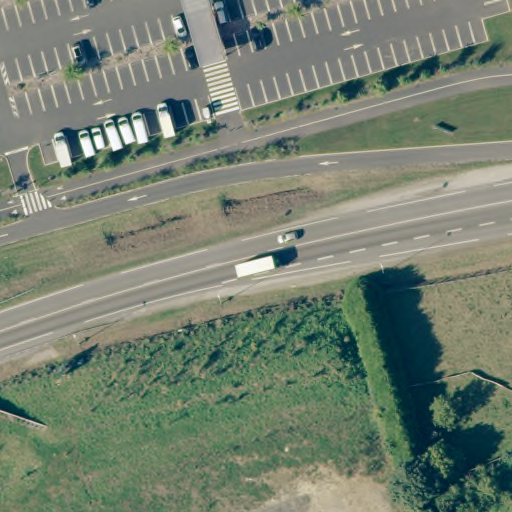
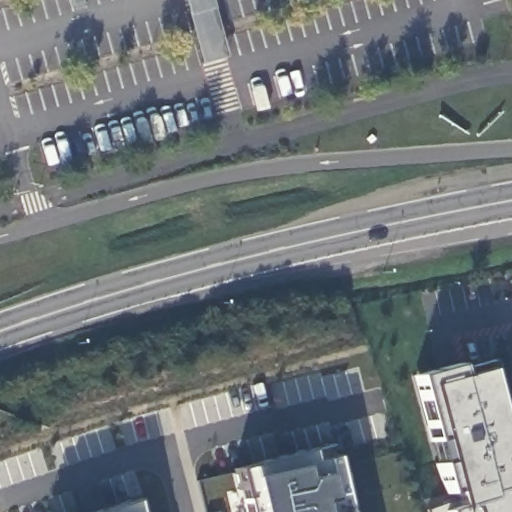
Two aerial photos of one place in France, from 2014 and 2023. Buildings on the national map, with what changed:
new [(453,491),(446,493),(413,378),(457,366),(459,373),(492,362),(503,396),(512,430),(512,512),(444,512),(457,507),(453,491)]
new [(308,426),(328,512),(244,512),(227,447),(308,426)]
new [(40,512),(121,479),(130,512),(40,512)]

